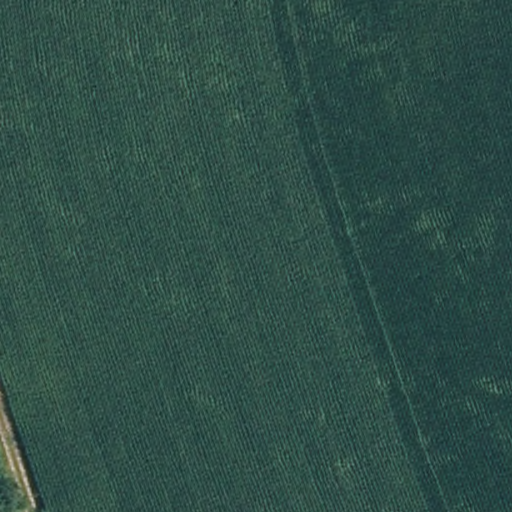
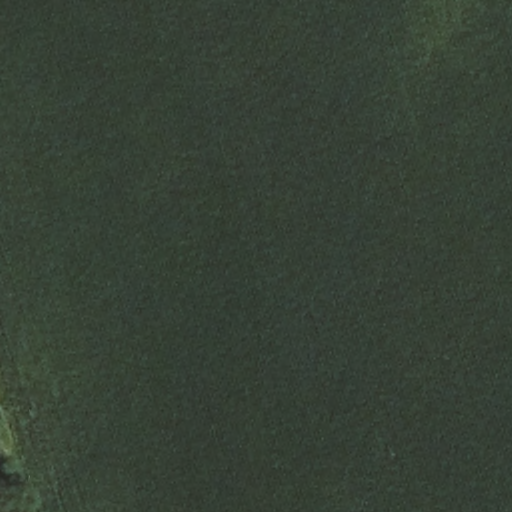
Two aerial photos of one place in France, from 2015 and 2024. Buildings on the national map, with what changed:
[]

